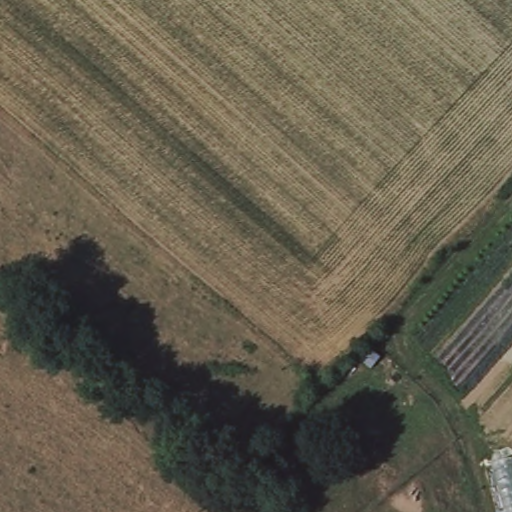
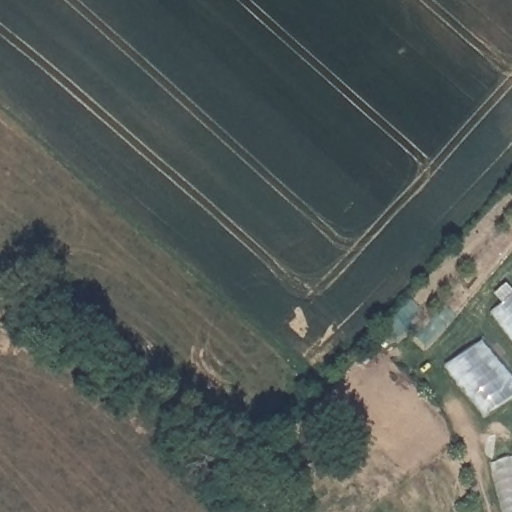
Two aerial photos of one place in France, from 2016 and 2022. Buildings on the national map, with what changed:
new [(490,310),(512,293),(512,340),(490,310)]
new [(512,376),(512,397),(486,415),(446,365),(483,339),(512,376)]
unchanged [(505,512),(493,462),(512,456),(512,512),(505,512)]

